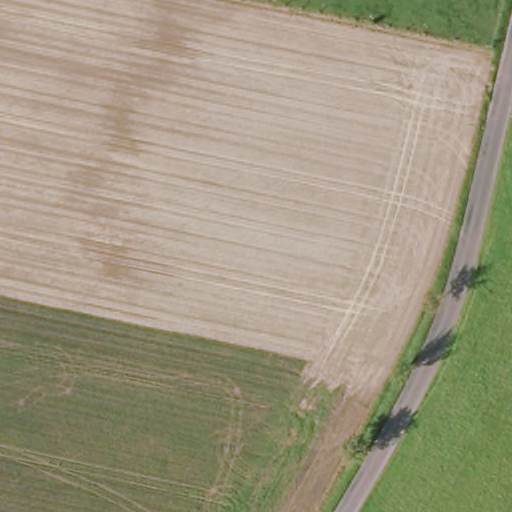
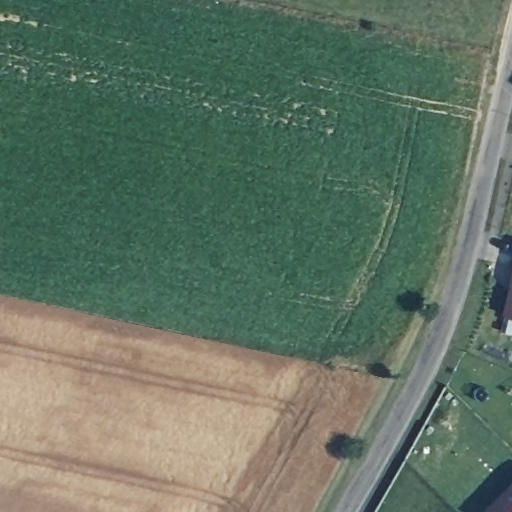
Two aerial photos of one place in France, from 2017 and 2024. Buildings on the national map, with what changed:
new [(512,280),(512,316),(504,314),(512,280)]
new [(485,511),(512,481),(512,512),(486,512),(485,511)]

